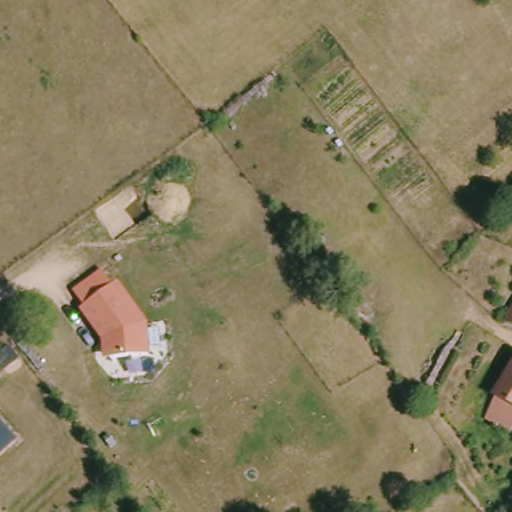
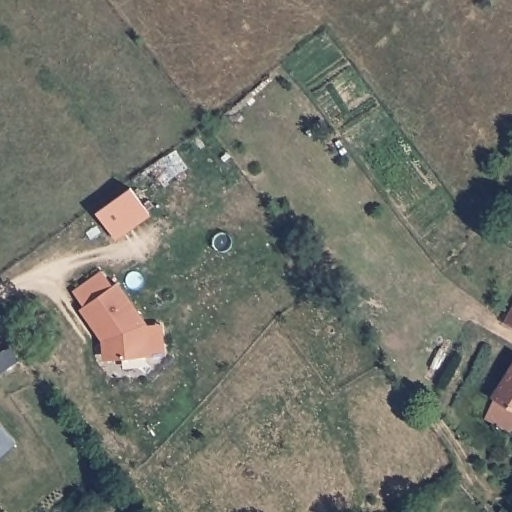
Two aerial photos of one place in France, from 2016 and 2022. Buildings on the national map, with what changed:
new [(97,210),(132,186),(152,216),(118,240),(97,210)]
unchanged [(102,343),(80,313),(120,286),(148,326),(151,359),(102,365),(102,343)]
unchanged [(502,317),(512,298),(512,322),(502,317)]
unchanged [(497,398),(490,394),(487,391),(500,372),(512,356),(512,411),(497,398)]
unchanged [(0,457),(0,424),(17,442),(0,457)]

